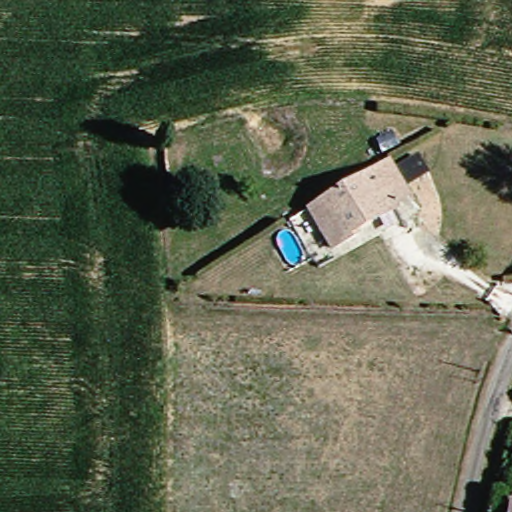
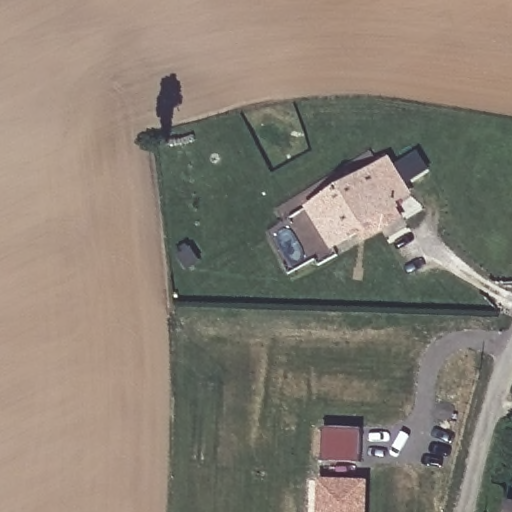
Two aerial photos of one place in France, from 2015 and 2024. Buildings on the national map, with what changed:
unchanged [(405,196),(389,205),(391,208),(340,234),(344,239),(324,250),(297,208),(361,170),(379,158),(405,196)]
new [(364,461),(325,460),(326,427),(363,427),(364,461)]
new [(369,512),(319,512),(320,478),(369,480),(369,512)]
unchanged [(494,499),(512,503),(512,512),(491,512),(494,499)]

